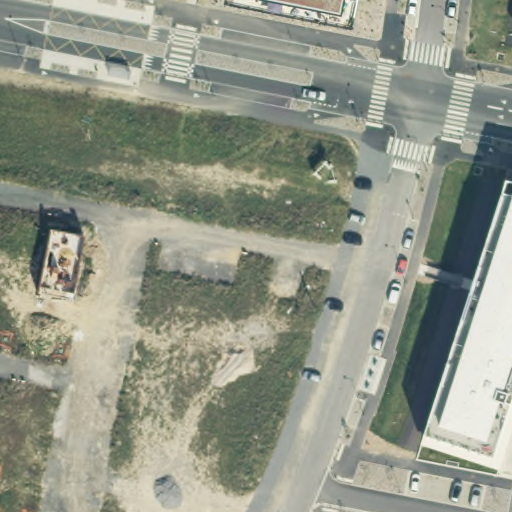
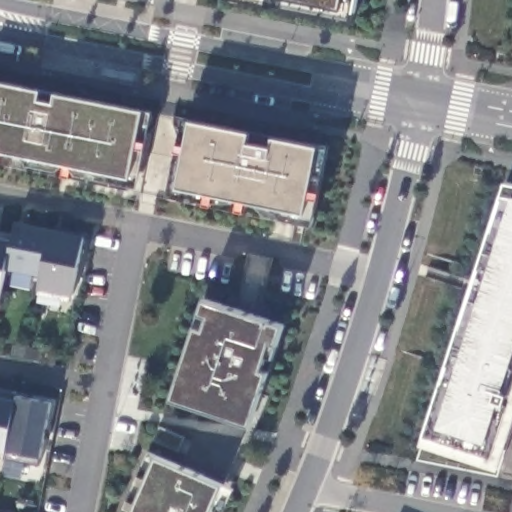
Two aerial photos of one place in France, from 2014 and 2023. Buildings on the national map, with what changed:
unchanged [(249,0),(356,0),(352,21),(249,0)]
new [(144,112),(131,178),(0,151),(0,82),(144,112)]
new [(256,128),(253,142),(274,147),(276,137),(320,146),(329,147),(313,222),(282,219),(267,217),(249,200),(222,195),(221,203),(172,194),(185,119),(193,121),(195,115),(256,128)]
unchanged [(504,181),(512,182),(512,427),(498,468),(420,442),(504,181)]
new [(13,239),(16,222),(86,235),(76,296),(38,289),(40,275),(10,271),(3,296),(2,304),(0,304),(0,236),(13,239)]
new [(283,325),(252,426),(171,398),(205,298),(283,325)]
unchanged [(14,398),(15,394),(53,402),(44,457),(37,456),(37,466),(6,459),(6,452),(0,451),(0,396),(14,398)]
new [(157,456),(222,485),(210,512),(133,512),(134,511),(124,507),(151,452),(157,456)]

